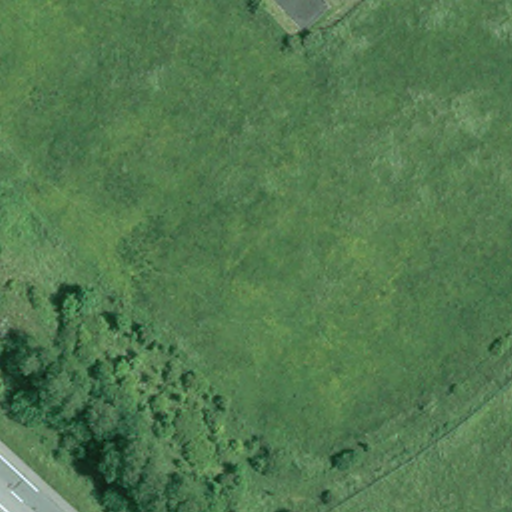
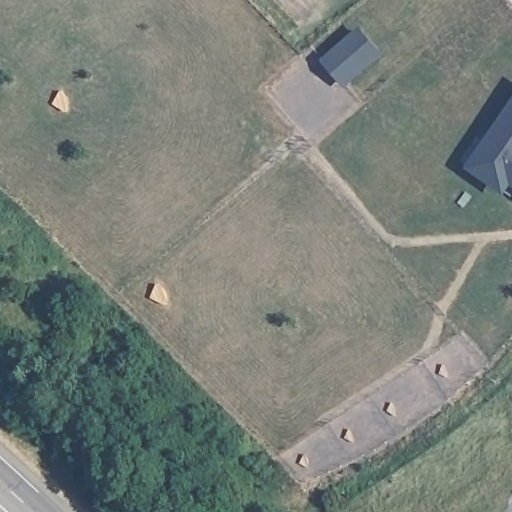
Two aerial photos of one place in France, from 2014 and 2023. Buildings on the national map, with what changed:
new [(383,56),(344,89),(320,60),(359,27),(383,56)]
new [(505,196),(465,169),(512,99),(512,187),(512,186),(505,196)]

